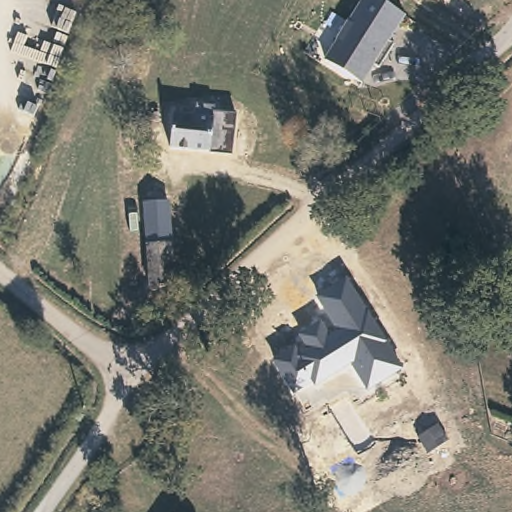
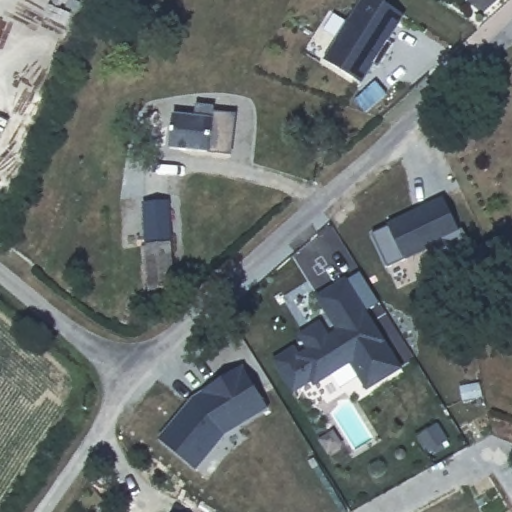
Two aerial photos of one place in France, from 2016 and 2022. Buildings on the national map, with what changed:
unchanged [(360,83),(322,59),(359,0),(377,0),(403,14),(360,83)]
unchanged [(207,118),(208,108),(235,114),(228,156),(168,147),(174,114),(207,118)]
new [(462,230),(475,255),(444,271),(432,247),(392,267),(375,234),(446,198),(462,230)]
unchanged [(172,200),(176,289),(151,291),(146,202),(172,200)]
unchanged [(351,366),(314,387),(310,382),(293,394),(273,361),(294,348),(298,354),(307,347),(301,338),(322,324),(329,335),(337,330),(318,295),(346,279),(402,368),(368,390),(351,366)]
new [(230,434),(200,471),(161,439),(195,399),(245,366),(271,409),(230,434)]

